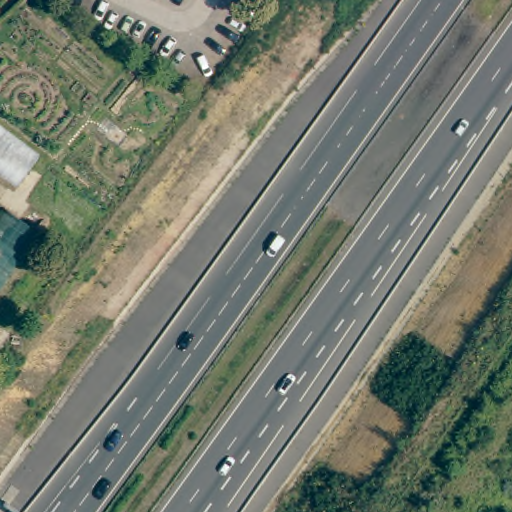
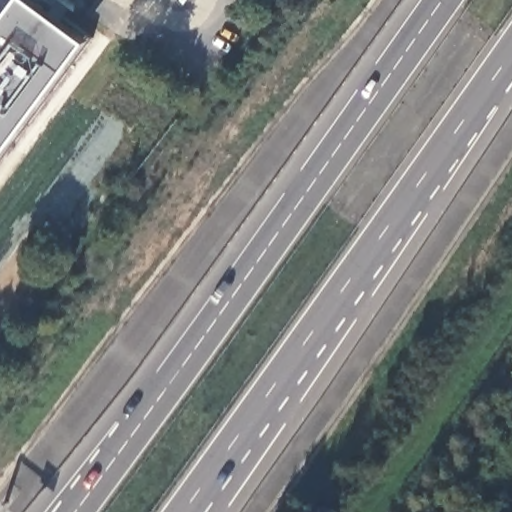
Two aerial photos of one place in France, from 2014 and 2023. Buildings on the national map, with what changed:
new [(21,0),(41,0),(92,38),(0,160),(0,28),(21,0)]

